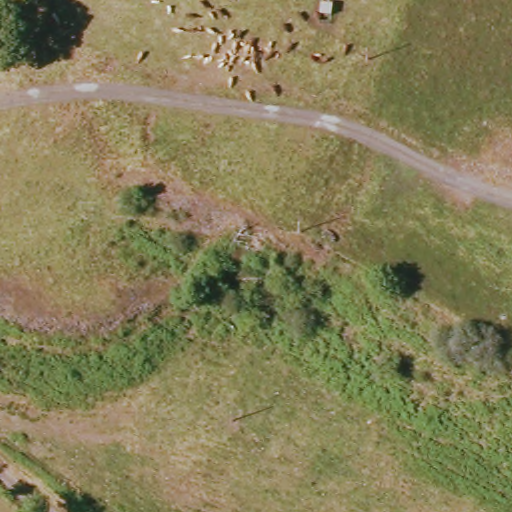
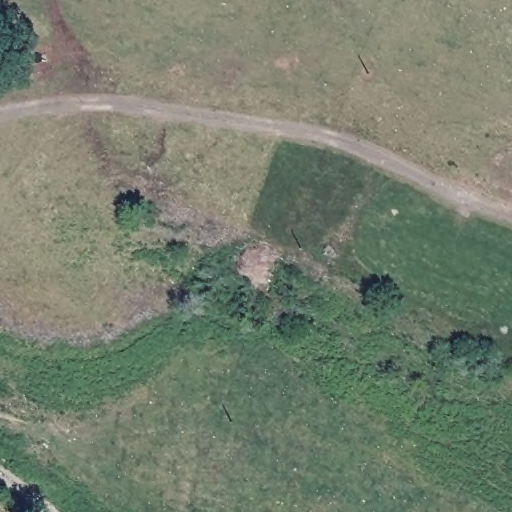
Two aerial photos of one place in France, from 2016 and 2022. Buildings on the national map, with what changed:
[]

